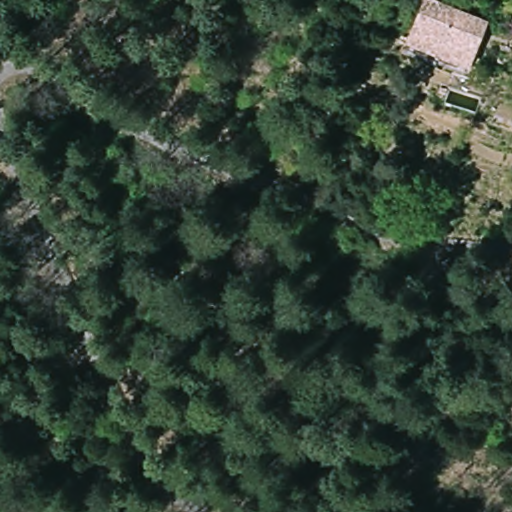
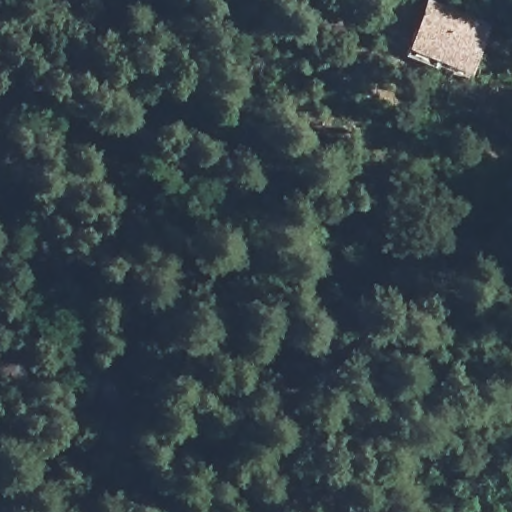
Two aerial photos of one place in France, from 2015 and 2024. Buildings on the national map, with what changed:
unchanged [(407,39),(425,0),(434,0),(472,17),(486,24),(479,39),(467,66),(407,39)]

